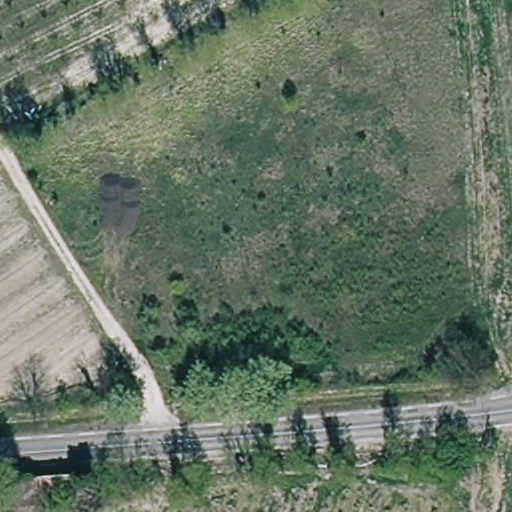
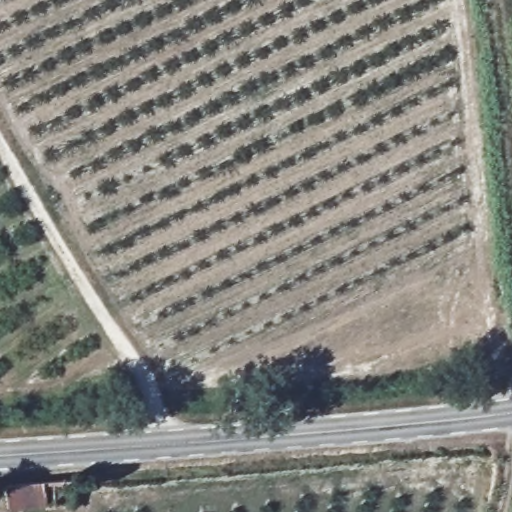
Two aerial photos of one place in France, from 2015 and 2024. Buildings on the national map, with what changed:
unchanged [(83,486),(86,510),(62,512),(15,512),(12,491),(83,486)]

